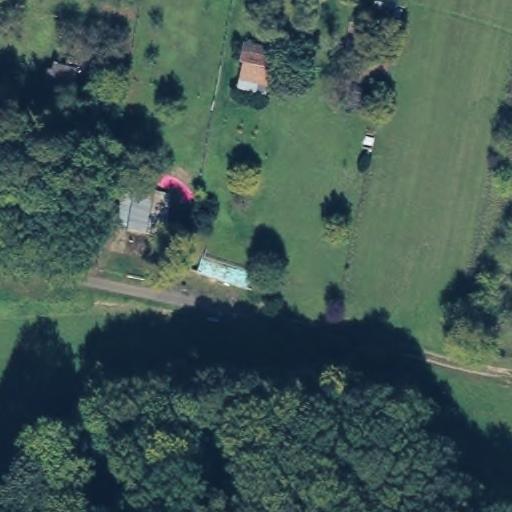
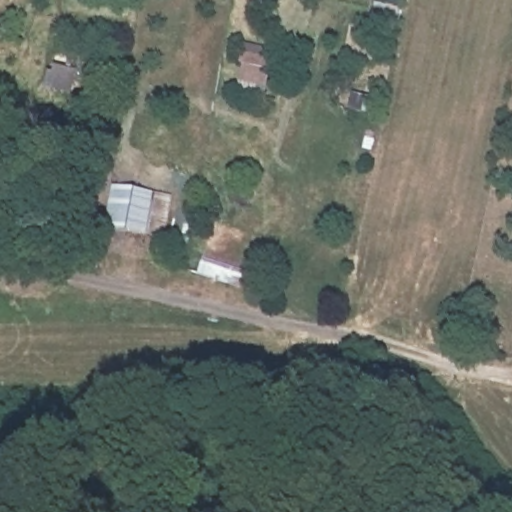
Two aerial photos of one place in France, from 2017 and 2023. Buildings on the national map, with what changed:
unchanged [(59,70),(79,72),(76,81),(57,80),(59,70)]
unchanged [(152,230),(137,229),(102,223),(108,187),(142,192),(156,195),(152,230)]
unchanged [(208,221),(250,234),(240,271),(198,258),(208,221)]

